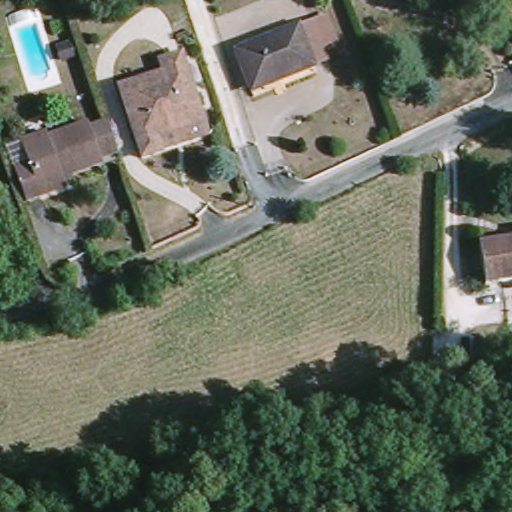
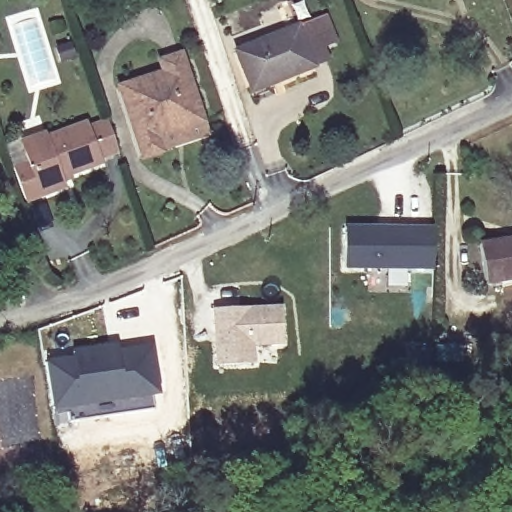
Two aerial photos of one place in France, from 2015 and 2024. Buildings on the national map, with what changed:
unchanged [(248,46),(311,24),(326,19),(340,60),(325,65),(263,87),(248,46)]
unchanged [(170,150),(150,156),(127,85),(171,70),(167,59),(190,51),(212,120),(217,135),(170,150)]
unchanged [(30,134),(56,125),(57,129),(98,115),(100,120),(119,114),(129,145),(110,151),(111,155),(70,169),(72,173),(46,181),(47,185),(28,191),(17,159),(37,152),(30,134)]
new [(342,225),(431,226),(430,267),(342,266),(342,225)]
demolished [(512,239),(512,283),(497,285),(490,243),(512,239)]
new [(281,341),(251,343),(251,362),(214,363),(213,340),(212,325),(212,308),(278,305),(281,341)]
new [(70,351),(107,345),(116,345),(117,350),(149,345),(156,392),(50,407),(42,362),(71,357),(70,351)]

